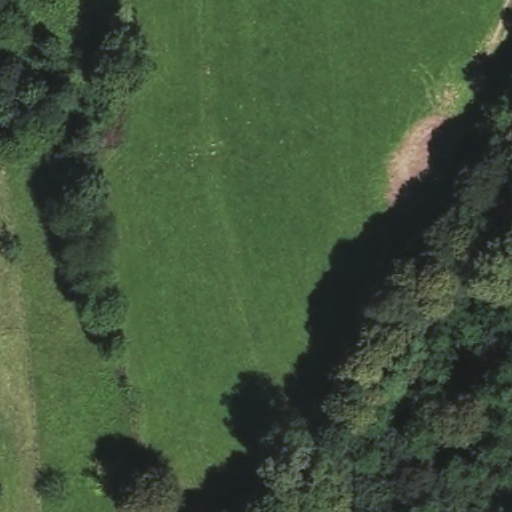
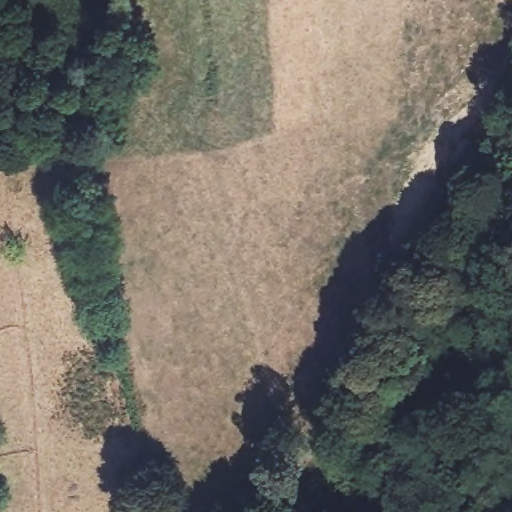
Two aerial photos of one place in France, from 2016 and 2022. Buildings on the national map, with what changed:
[]

